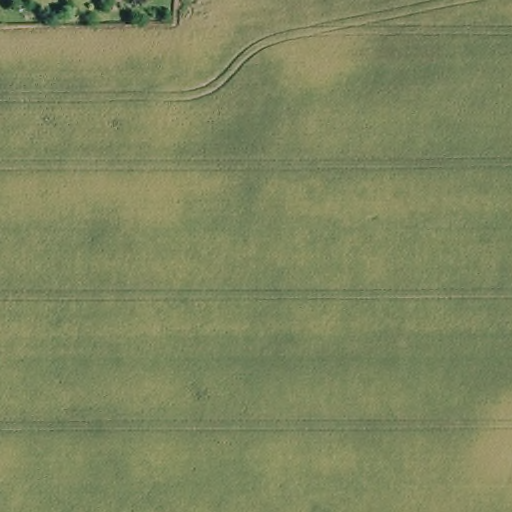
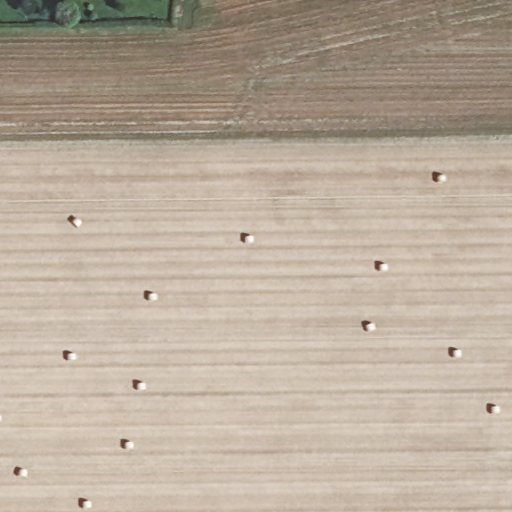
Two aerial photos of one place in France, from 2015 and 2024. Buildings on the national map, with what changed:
[]

